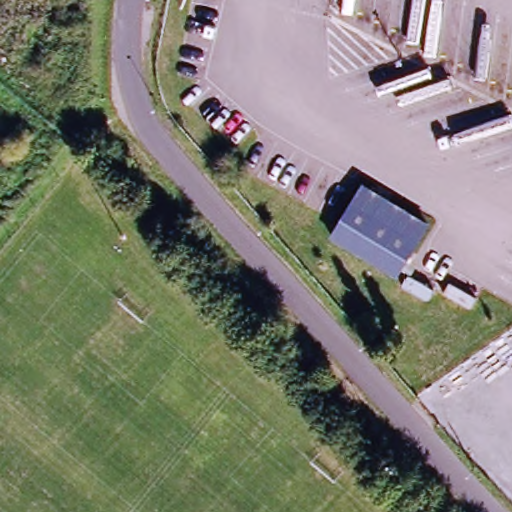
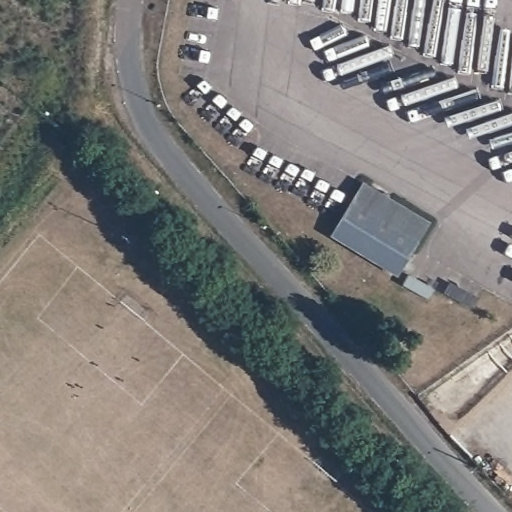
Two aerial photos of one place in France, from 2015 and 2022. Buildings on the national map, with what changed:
unchanged [(351,208),(352,209),(362,190),(413,219),(404,237),(405,237),(401,244),(398,249),(385,272),(332,243),(351,208)]

